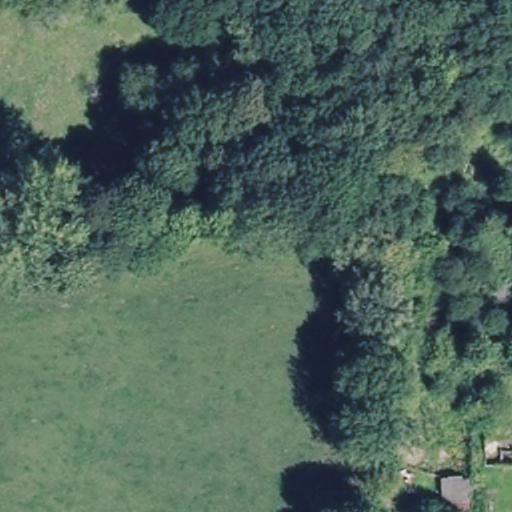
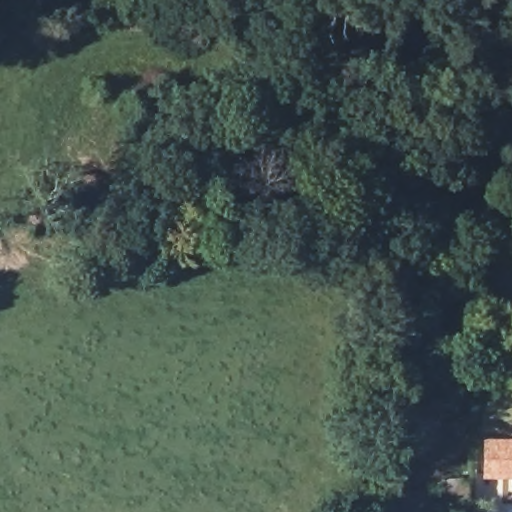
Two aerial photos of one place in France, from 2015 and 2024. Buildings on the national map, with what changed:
new [(481,437),(512,437),(512,478),(481,478),(481,437)]

